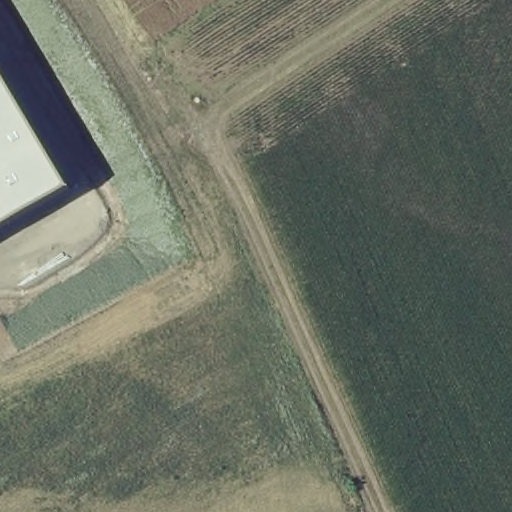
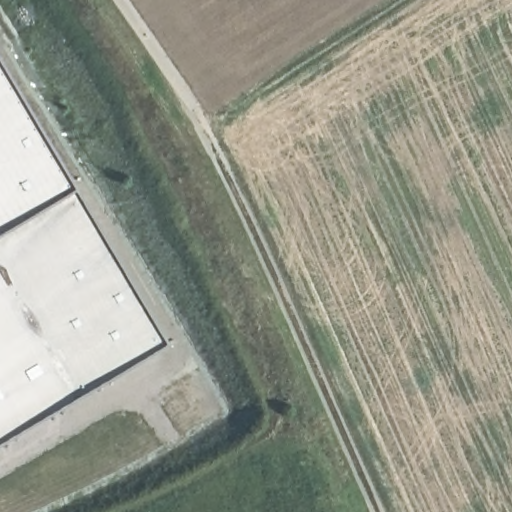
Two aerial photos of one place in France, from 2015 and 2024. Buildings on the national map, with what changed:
unchanged [(0,228),(0,71),(69,188),(0,228)]
new [(0,437),(0,228),(69,188),(160,343),(0,437)]

